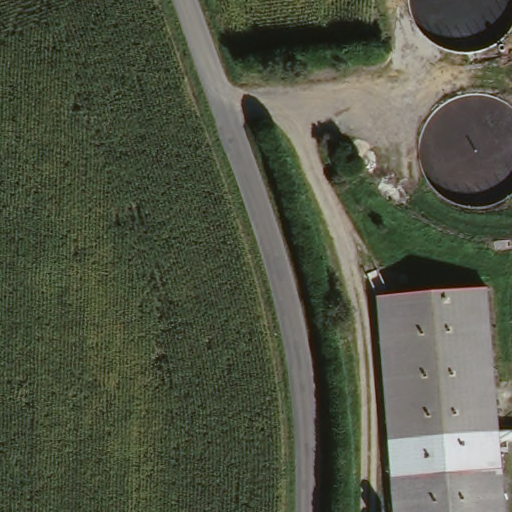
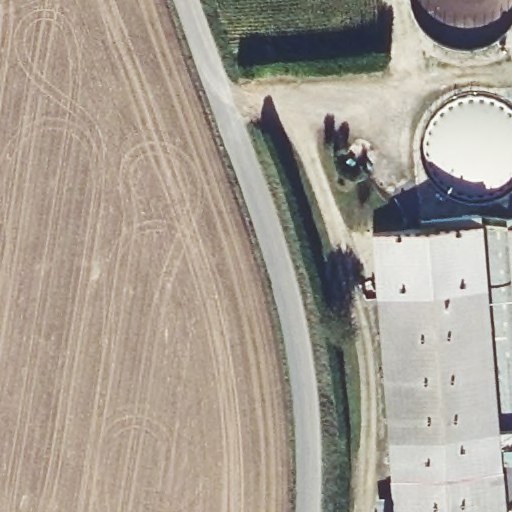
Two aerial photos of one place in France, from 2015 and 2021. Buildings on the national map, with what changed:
new [(374,232),(483,223),(488,292),(379,299),(374,232)]
unchanged [(497,437),(388,444),(379,299),(488,292),(497,437)]
unchanged [(391,482),(388,444),(497,437),(500,476),(391,482)]
unchanged [(502,512),(393,512),(391,482),(500,476),(502,512)]

